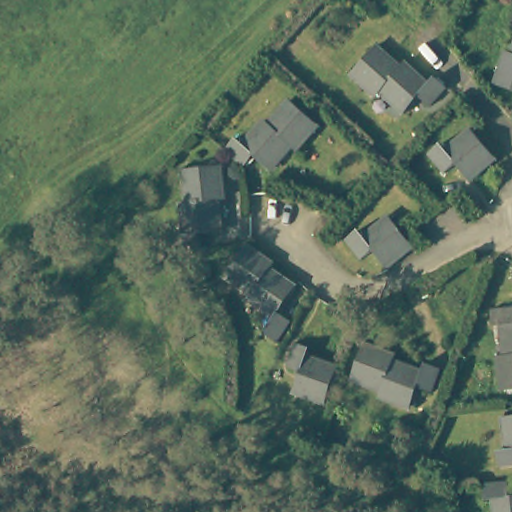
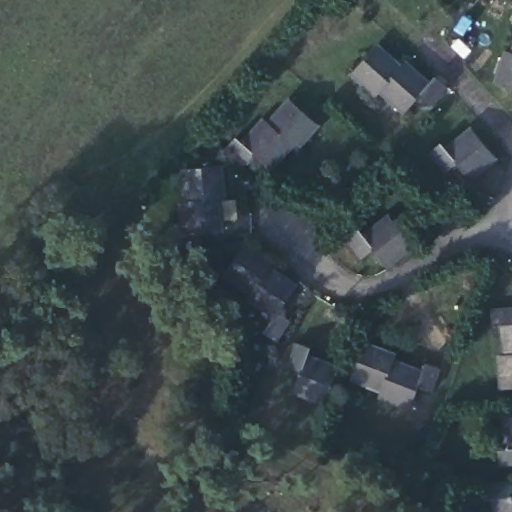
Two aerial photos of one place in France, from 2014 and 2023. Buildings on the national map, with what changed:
unchanged [(510,25),(512,18),(512,26),(510,25)]
unchanged [(429,110),(420,102),(407,115),(382,94),(377,99),(354,78),(376,52),(399,71),(403,66),(428,87),(433,82),(445,92),(429,110)]
unchanged [(497,89),(509,53),(512,54),(512,94),(497,89)]
unchanged [(317,125),(295,147),(290,144),(268,166),(253,155),(243,165),(225,149),(235,138),(242,144),(265,120),(268,124),(291,101),(317,125)]
unchanged [(494,156),(468,176),(456,164),(444,173),(428,154),(440,144),(447,150),(471,131),(494,156)]
unchanged [(175,250),(174,232),(184,232),(183,200),(189,200),(188,168),(220,166),(222,199),(217,199),(218,230),(201,231),(201,247),(175,250)]
unchanged [(376,254),(365,261),(349,243),(363,234),(369,240),(393,222),(416,248),(389,267),(376,254)]
unchanged [(275,337),(263,327),(275,311),(247,291),(251,286),(222,264),(242,240),(270,260),(268,262),(295,282),(279,305),(292,316),(275,337)]
unchanged [(512,308),(512,388),(506,388),(504,355),(511,355),(509,325),(496,325),(495,309),(512,308)]
unchanged [(392,362),(419,373),(424,362),(440,368),(430,392),(417,388),(408,405),(379,394),(382,388),(351,375),(365,345),(394,358),(392,362)]
unchanged [(311,353),(307,363),(336,375),(324,405),(293,391),(300,376),(285,369),(294,347),(311,353)]
unchanged [(498,466),(497,448),(506,447),(505,415),(512,415),(512,465),(498,466)]
unchanged [(501,500),(488,500),(488,483),(512,483),(512,512),(501,512),(501,500)]

